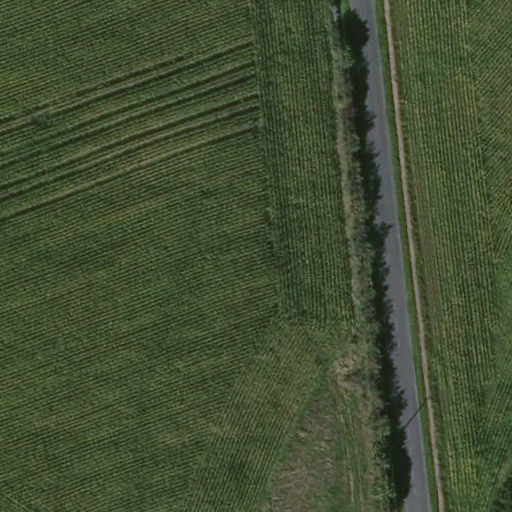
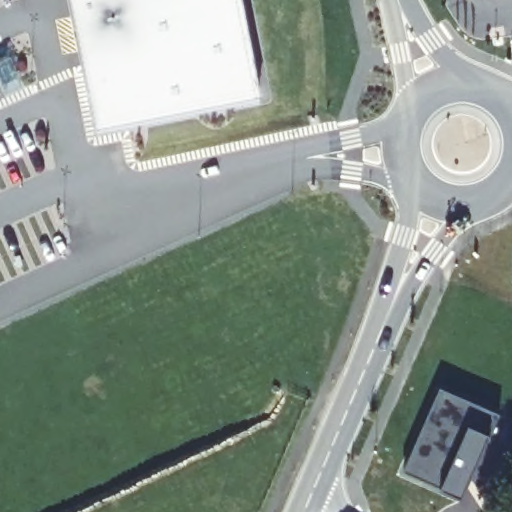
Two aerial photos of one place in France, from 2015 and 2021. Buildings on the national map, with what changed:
new [(259,100),(97,131),(71,0),(240,0),(259,100)]
new [(440,489),(403,474),(438,391),(498,415),(475,470),(466,466),(454,494),(440,489)]

